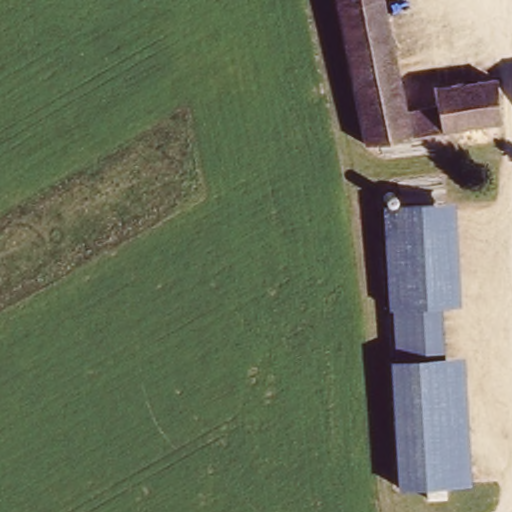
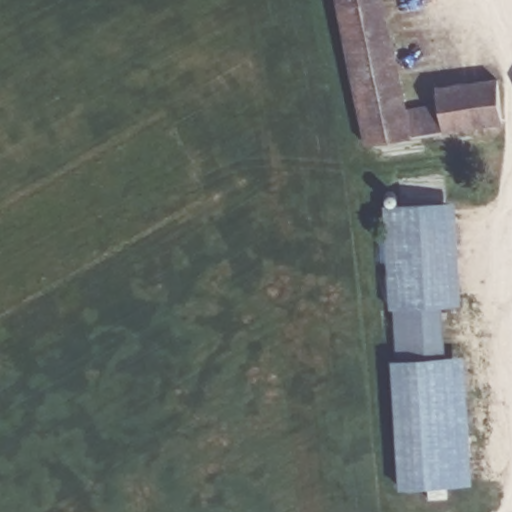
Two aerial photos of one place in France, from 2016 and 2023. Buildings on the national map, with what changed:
unchanged [(400,111),(432,105),(428,86),(491,78),(495,122),(358,143),(329,0),(376,0),(400,111)]
unchanged [(448,203),(454,303),(383,307),(378,205),(448,203)]
unchanged [(433,306),(437,356),(390,358),(387,308),(433,306)]
unchanged [(456,357),(461,427),(389,431),(385,360),(456,357)]
unchanged [(461,427),(464,481),(392,486),(389,431),(461,427)]

